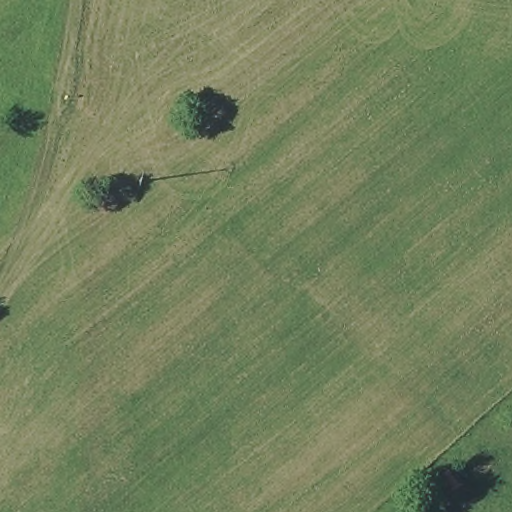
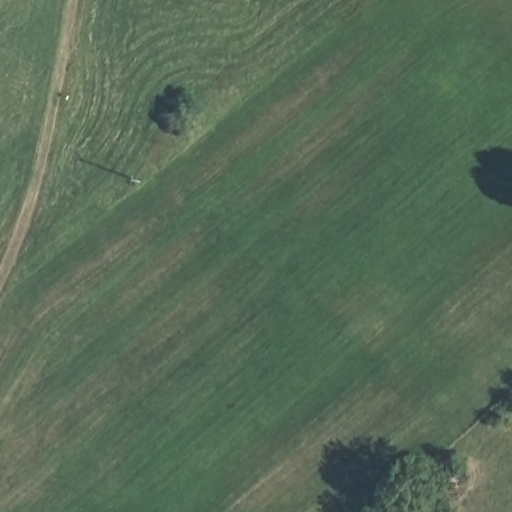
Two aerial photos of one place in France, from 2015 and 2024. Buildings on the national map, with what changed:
unchanged [(448,502),(436,484),(454,472),(466,490),(448,502)]

